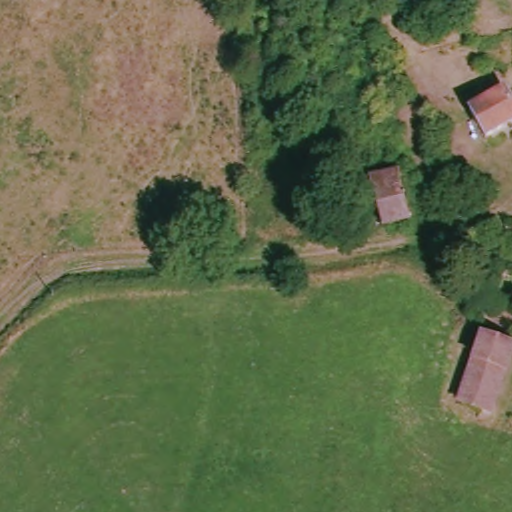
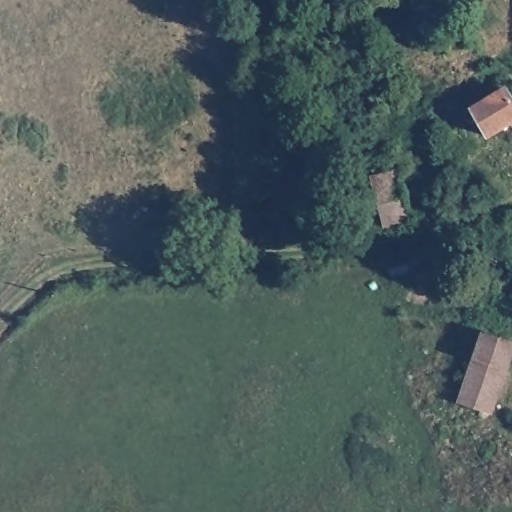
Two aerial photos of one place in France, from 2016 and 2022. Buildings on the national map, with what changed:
unchanged [(512,101),(512,120),(488,135),(473,110),(506,90),(512,101)]
unchanged [(369,182),(392,178),(408,223),(387,229),(369,182)]
unchanged [(512,345),(512,350),(490,414),(461,403),(482,334),(512,345)]

